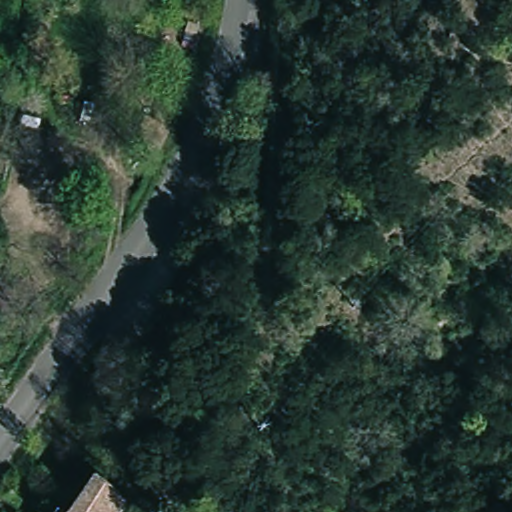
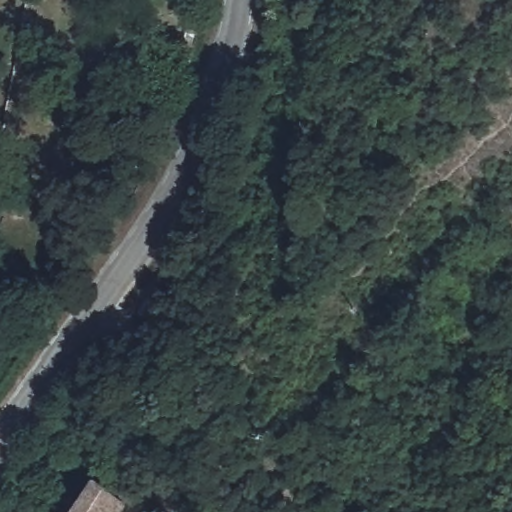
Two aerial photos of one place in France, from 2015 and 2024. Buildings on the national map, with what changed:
unchanged [(61,512),(57,502),(61,496),(72,505),(98,464),(127,491),(117,512),(61,512)]

